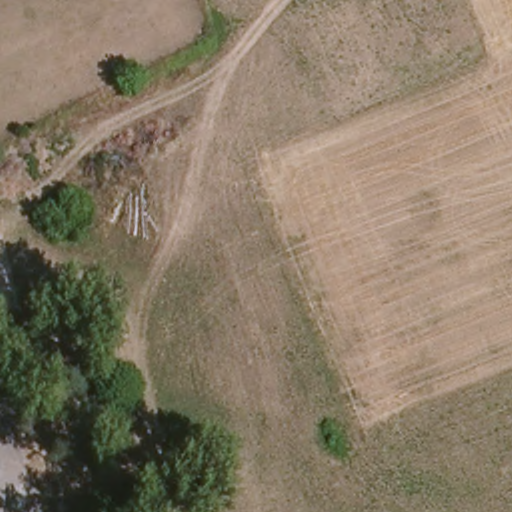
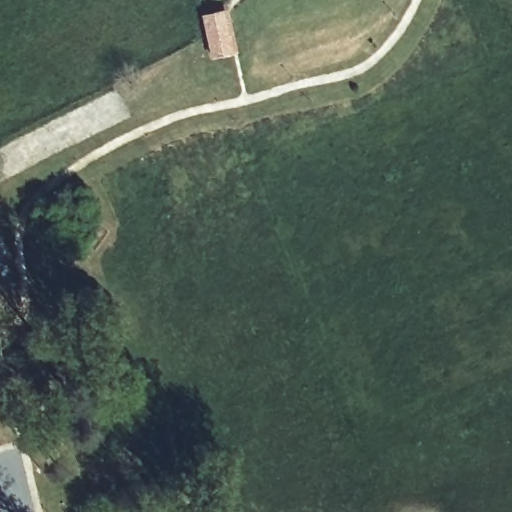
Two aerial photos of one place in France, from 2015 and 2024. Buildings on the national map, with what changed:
new [(236,53),(213,58),(203,15),(227,9),(236,53)]

